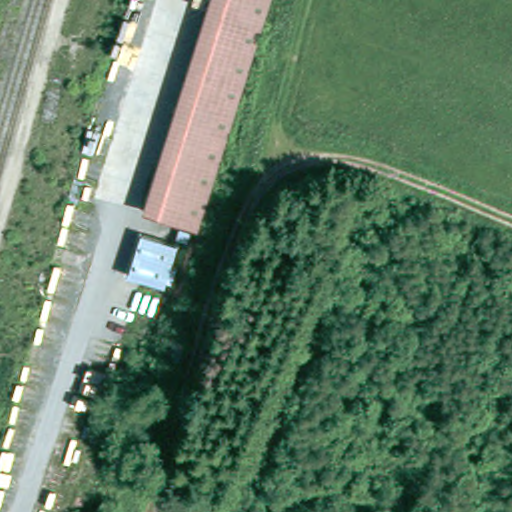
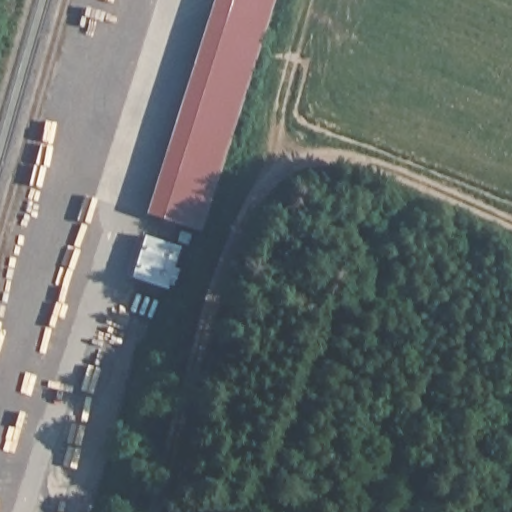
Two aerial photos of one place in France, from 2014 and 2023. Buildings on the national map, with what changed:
unchanged [(143,215),(210,0),(273,0),(199,231),(143,215)]

